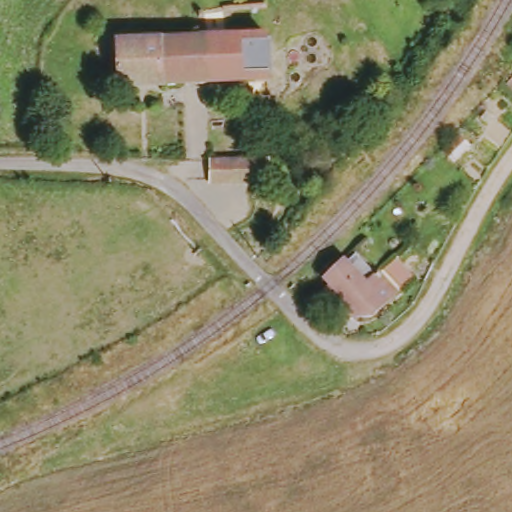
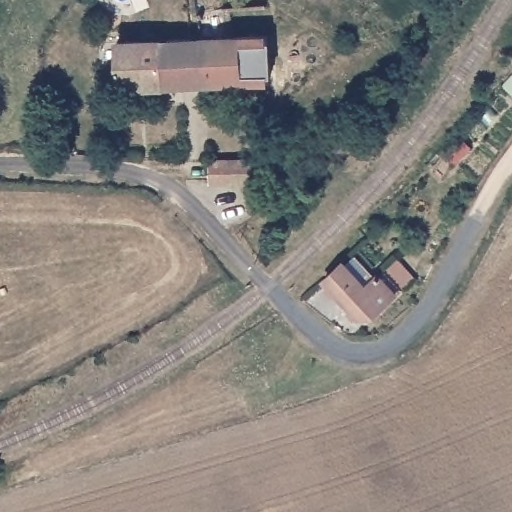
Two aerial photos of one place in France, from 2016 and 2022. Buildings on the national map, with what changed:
unchanged [(264,85),(156,91),(156,86),(116,88),(112,48),(264,38),(264,85)]
unchanged [(263,166),(262,185),(208,185),(210,166),(263,166)]
unchanged [(352,304),(325,276),(344,260),(354,251),(373,269),(381,262),(400,282),(393,289),(367,311),(352,304)]

